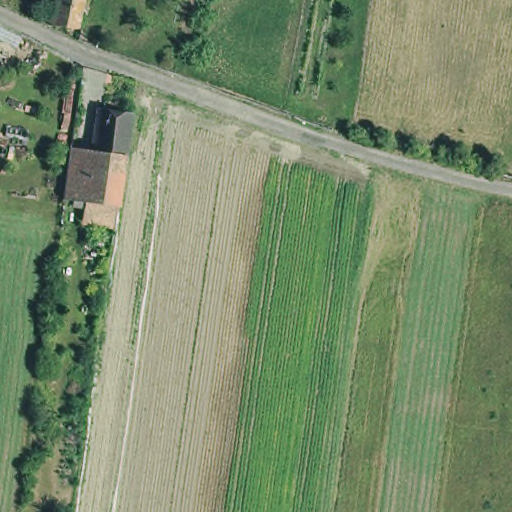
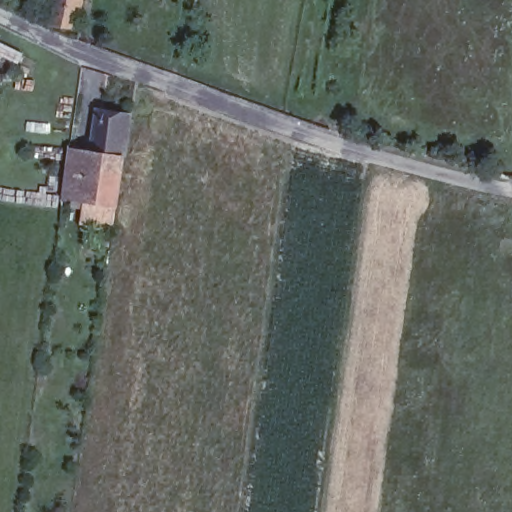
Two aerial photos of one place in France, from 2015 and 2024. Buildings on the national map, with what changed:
unchanged [(81,23),(53,18),(58,0),(86,0),(81,23)]
unchanged [(97,144),(103,102),(135,107),(132,125),(128,155),(127,167),(94,163),(97,144)]
unchanged [(94,163),(88,194),(68,191),(76,140),(97,144),(94,163)]
unchanged [(86,216),(89,194),(88,194),(94,163),(127,167),(122,195),(122,199),(117,221),(86,216)]

